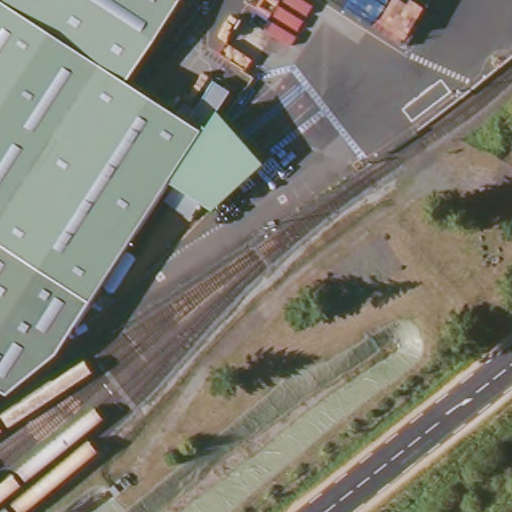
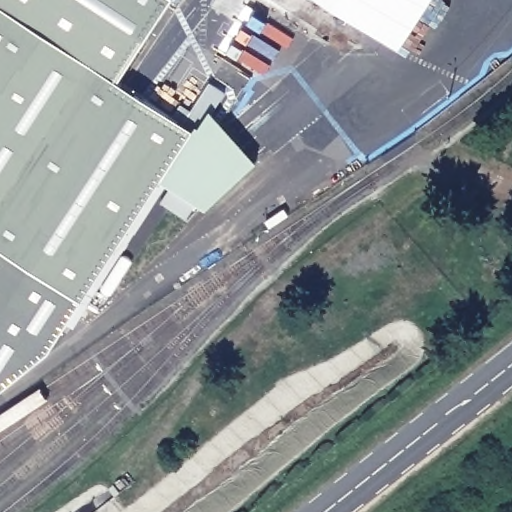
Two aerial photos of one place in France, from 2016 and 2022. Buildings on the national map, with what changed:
unchanged [(124,81),(198,131),(175,167),(55,350),(5,390),(0,387),(0,0),(175,0),(124,81)]
unchanged [(175,167),(198,131),(174,115),(184,101),(195,108),(213,80),(230,91),(216,110),(260,161),(210,208),(167,180),(175,167)]

